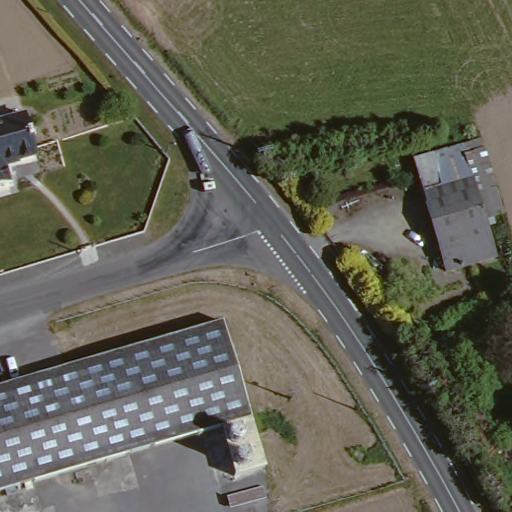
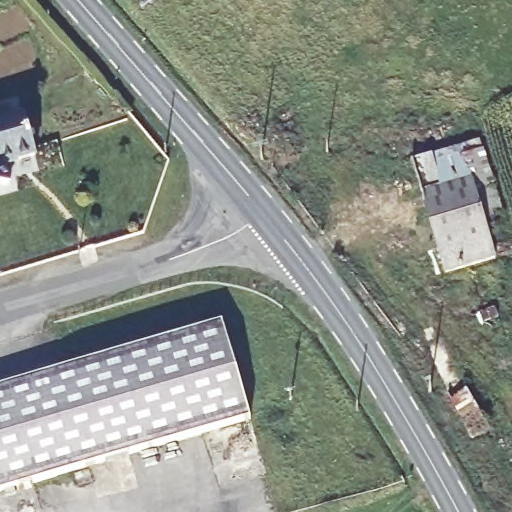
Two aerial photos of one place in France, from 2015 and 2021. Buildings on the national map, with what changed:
unchanged [(37,159),(7,167),(12,189),(0,192),(0,125),(25,119),(37,159)]
unchanged [(479,224),(485,242),(437,258),(408,167),(473,144),(497,217),(479,224)]
unchanged [(485,242),(492,262),(445,280),(437,258),(485,242)]
unchanged [(267,473),(224,488),(202,432),(0,495),(0,389),(220,325),(249,421),(267,473)]

